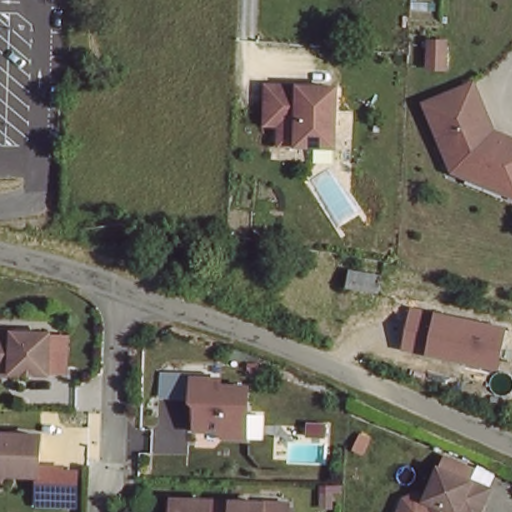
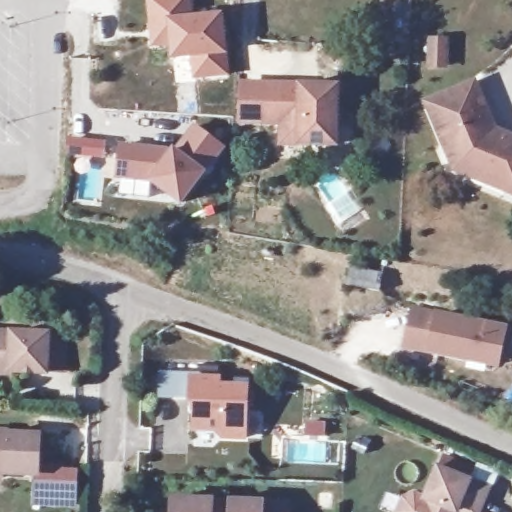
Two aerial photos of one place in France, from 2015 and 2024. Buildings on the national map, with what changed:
new [(187,17),(218,17),(220,56),(225,55),(225,78),(190,79),(190,60),(166,60),(165,38),(141,38),(141,0),(187,0),(187,17)]
unchanged [(450,40),(449,65),(432,65),(433,39),(450,40)]
unchanged [(470,174),(453,167),(425,101),(472,81),(487,115),(491,124),(492,128),(512,135),(512,191),(470,174)]
unchanged [(316,141),(281,141),(280,121),(267,121),(267,82),(335,82),(336,128),(336,140),(316,141)]
new [(111,183),(116,141),(170,149),(173,145),(192,125),(225,150),(207,173),(210,176),(181,213),(145,186),(111,183)]
unchanged [(379,284),(378,304),(345,299),(347,280),(379,284)]
unchanged [(502,370),(427,356),(403,350),(412,306),(435,312),(510,326),(502,370)]
unchanged [(37,370),(0,368),(0,328),(39,330),(37,370)]
unchanged [(217,376),(217,382),(245,384),(243,435),(221,434),(214,427),(192,425),(194,399),(188,399),(190,374),(217,376)]
unchanged [(35,470),(0,469),(0,429),(35,430),(35,470)]
unchanged [(456,512),(453,511),(453,512),(415,512),(435,466),(441,455),(468,467),(463,479),(485,488),(476,512),(456,512)]
unchanged [(222,495),(221,512),(165,512),(166,493),(222,495)]
unchanged [(275,498),(274,512),(221,512),(222,495),(275,498)]

